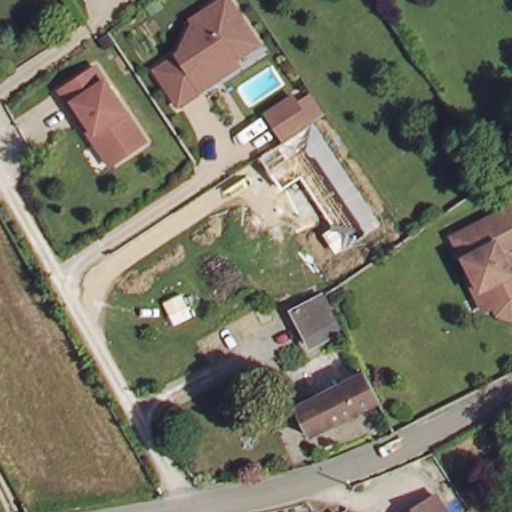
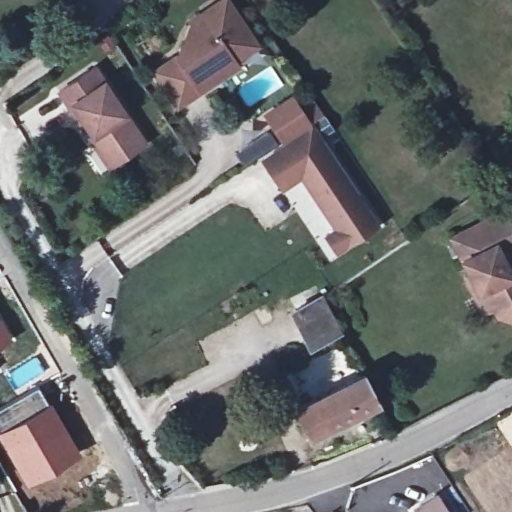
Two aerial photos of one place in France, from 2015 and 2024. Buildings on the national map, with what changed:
unchanged [(245,64),(181,103),(155,65),(177,53),(173,40),(192,29),(187,19),(216,0),(233,0),(265,45),(244,58),(245,64)]
unchanged [(111,164),(59,89),(95,63),(146,141),(111,164)]
unchanged [(264,113),(292,95),(297,103),(310,94),(324,115),(282,143),(264,113)]
new [(313,123),(379,224),(336,254),(322,234),(332,228),(301,179),(281,191),(259,156),(282,143),(313,123)]
unchanged [(462,274),(467,270),(460,255),(450,235),(457,232),(512,204),(512,246),(507,249),(511,259),(512,261),(512,317),(510,318),(495,313),(491,305),(479,310),(462,274)]
unchanged [(342,329),(315,344),(298,309),(323,292),(342,329)]
new [(0,344),(0,315),(13,337),(0,344)]
unchanged [(307,434),(292,405),(361,369),(376,399),(307,434)]
new [(48,402),(0,427),(0,407),(39,386),(48,402)]
new [(51,401),(80,453),(26,486),(0,439),(0,427),(48,402),(51,401)]
unchanged [(450,512),(418,512),(440,498),(450,512)]

